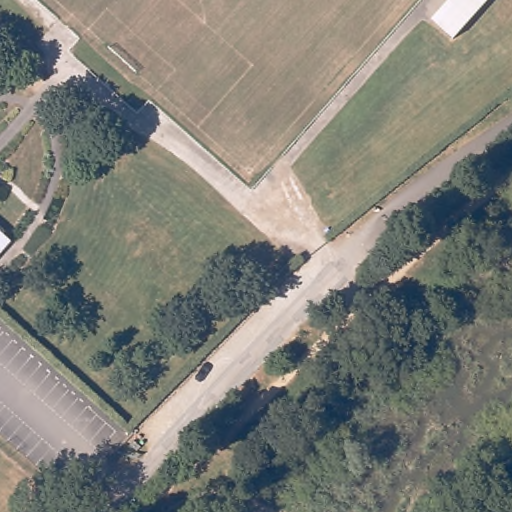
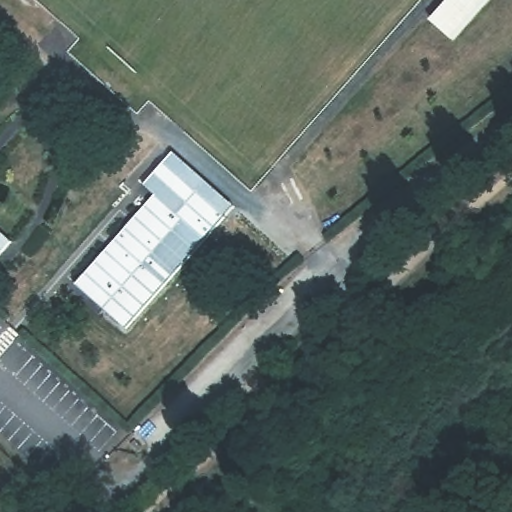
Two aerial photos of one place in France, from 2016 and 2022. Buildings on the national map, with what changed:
unchanged [(486,0),(490,3),(454,44),(432,24),(455,0),(486,0)]
new [(125,328),(74,286),(155,196),(143,185),(174,154),(233,206),(125,328)]
demolished [(75,235),(123,253),(111,282),(62,265),(75,235)]
unchanged [(0,256),(0,238),(9,246),(0,256)]

